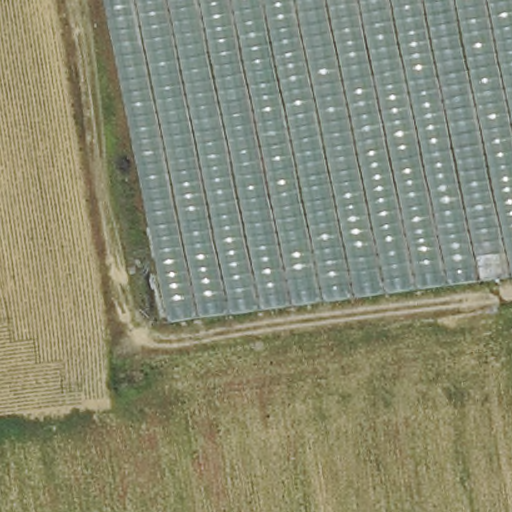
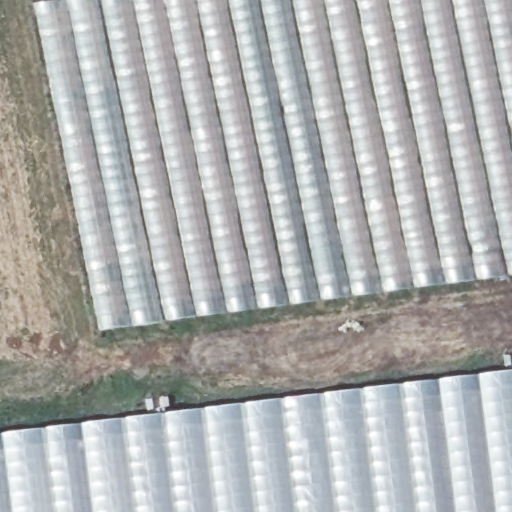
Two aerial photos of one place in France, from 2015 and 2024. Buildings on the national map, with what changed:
unchanged [(46,2),(58,0),(512,0),(512,278),(108,331),(46,2)]
new [(512,512),(0,512),(0,439),(512,374),(512,512)]
demolished [(175,395),(199,512),(0,512),(0,428),(175,395)]

